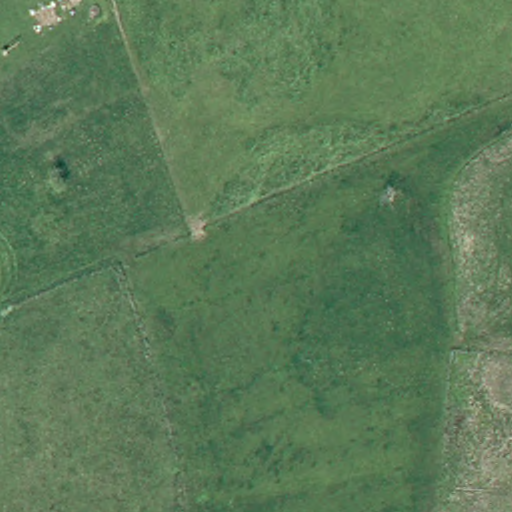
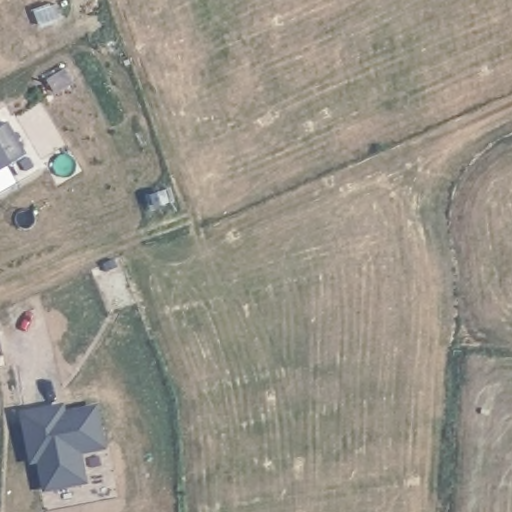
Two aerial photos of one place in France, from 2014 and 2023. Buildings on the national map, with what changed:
new [(29,157),(13,166),(0,174),(0,127),(9,122),(29,157)]
new [(107,451),(83,455),(88,484),(44,492),(39,463),(31,465),(21,412),(65,402),(67,411),(98,405),(107,451)]

